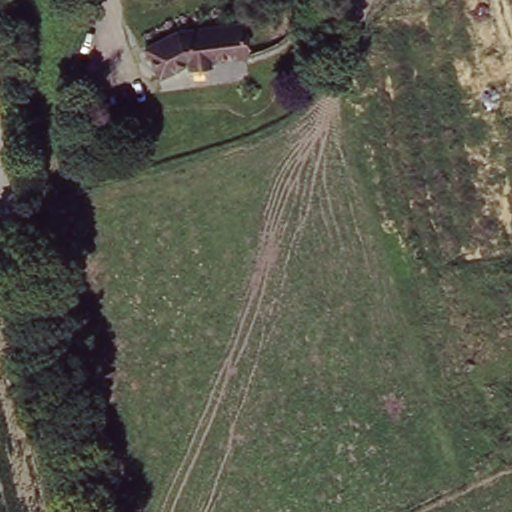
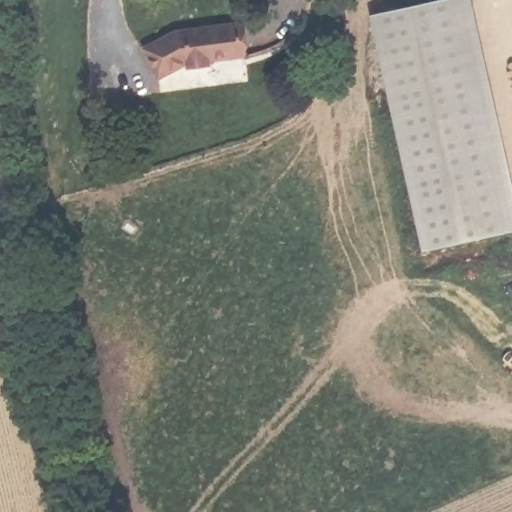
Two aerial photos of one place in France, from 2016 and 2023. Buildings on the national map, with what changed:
new [(512,133),(512,239),(425,257),(373,16),(451,0),(488,0),(512,133)]
unchanged [(243,60),(211,60),(210,68),(189,69),(188,61),(182,61),(158,73),(145,44),(177,29),(242,28),(243,60)]

